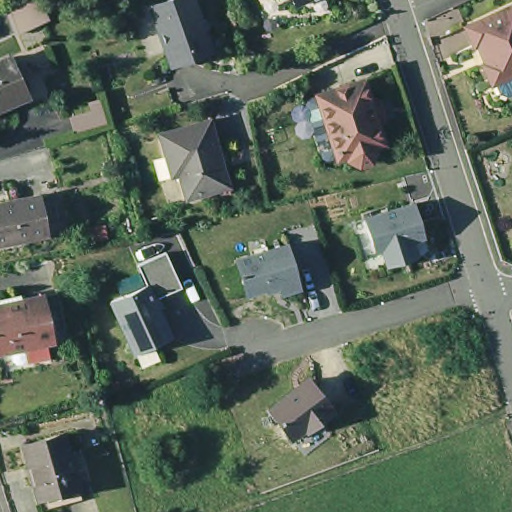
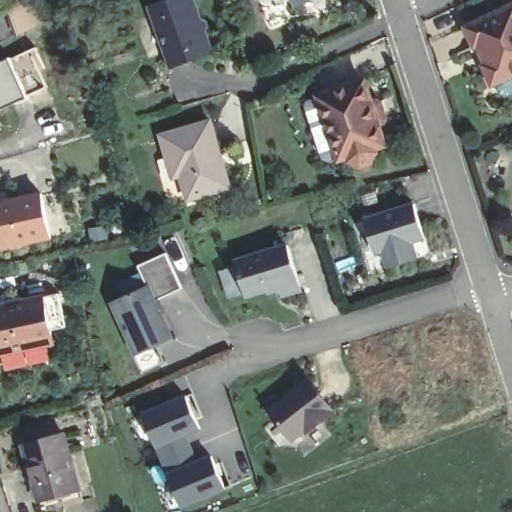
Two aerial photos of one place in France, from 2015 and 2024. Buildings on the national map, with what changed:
unchanged [(49,21),(20,34),(12,15),(11,13),(37,1),(39,0),(40,2),(49,21)]
unchanged [(205,53),(171,65),(152,11),(183,0),(192,0),(199,18),(205,20),(207,25),(204,31),(204,33),(211,51),(205,53)]
unchanged [(312,6),(311,4),(294,12),(290,3),(276,9),(272,0),(325,0),(312,6)]
unchanged [(469,47),(459,26),(512,1),(512,42),(479,59),(472,45),(469,47)]
unchanged [(483,86),(487,85),(477,64),(480,63),(479,59),(512,42),(512,90),(490,100),(483,86)]
unchanged [(6,58),(24,99),(0,110),(0,61),(6,58)]
unchanged [(377,78),(384,101),(393,98),(397,109),(399,114),(389,117),(397,140),(387,143),(388,148),(383,158),(372,161),(362,156),(361,152),(351,155),(345,136),(331,92),(377,78)]
unchanged [(345,136),(351,155),(336,159),(331,144),(316,97),(331,92),(345,136)]
unchanged [(209,125),(219,159),(217,160),(219,165),(221,165),(229,191),(187,204),(175,161),(167,163),(160,139),(209,125)]
unchanged [(39,196),(47,237),(0,248),(0,205),(39,196)]
unchanged [(417,205),(422,224),(409,230),(417,259),(391,267),(385,252),(378,254),(369,220),(417,205)]
unchanged [(290,246),(301,286),(249,302),(237,262),(290,246)]
unchanged [(182,290),(159,299),(175,339),(134,359),(109,305),(147,288),(137,267),(168,254),(182,290)]
unchanged [(10,310),(22,308),(22,305),(43,301),(53,347),(0,358),(0,310),(8,308),(8,311),(10,310)]
unchanged [(335,412),(297,440),(273,410),(311,378),(335,412)]
new [(226,487),(183,506),(143,413),(186,396),(200,427),(185,434),(198,462),(212,456),(226,487)]
unchanged [(43,510),(40,497),(38,497),(31,473),(23,444),(26,443),(64,432),(80,485),(78,485),(82,499),(43,510)]

